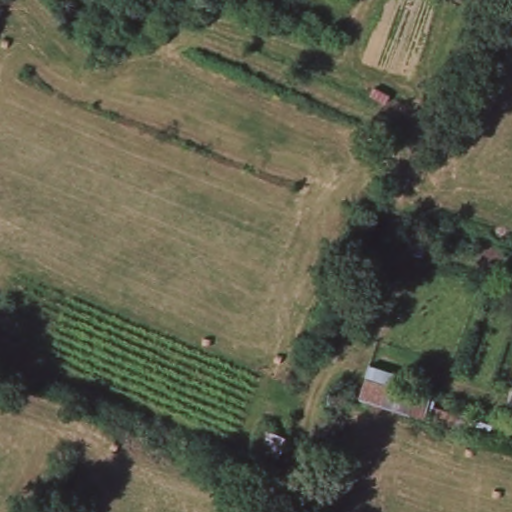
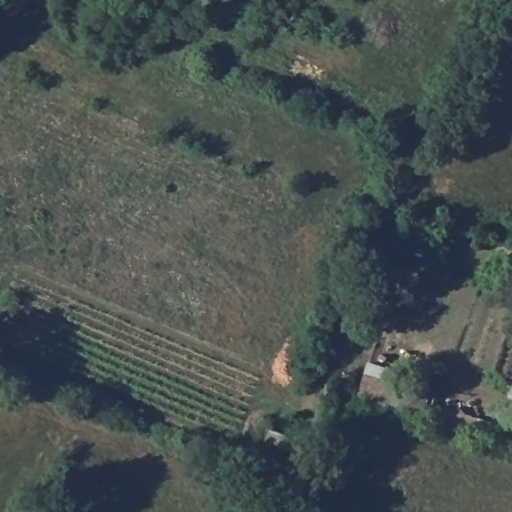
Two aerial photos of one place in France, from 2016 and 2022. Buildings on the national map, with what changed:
unchanged [(362,399),(366,379),(416,389),(413,409),(362,399)]
unchanged [(416,389),(432,394),(431,402),(455,413),(457,409),(466,412),(467,417),(496,425),(492,439),(467,429),(465,432),(413,409),(416,389)]

